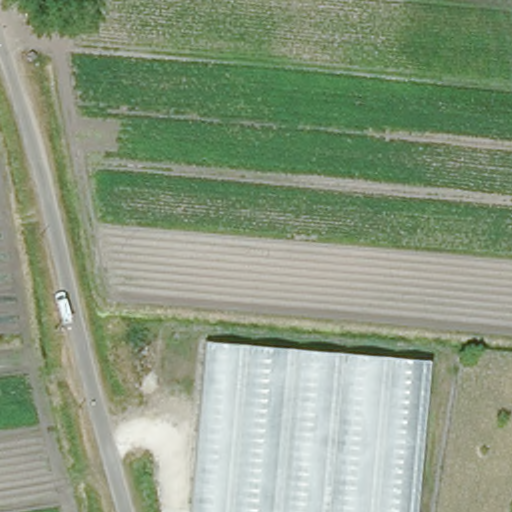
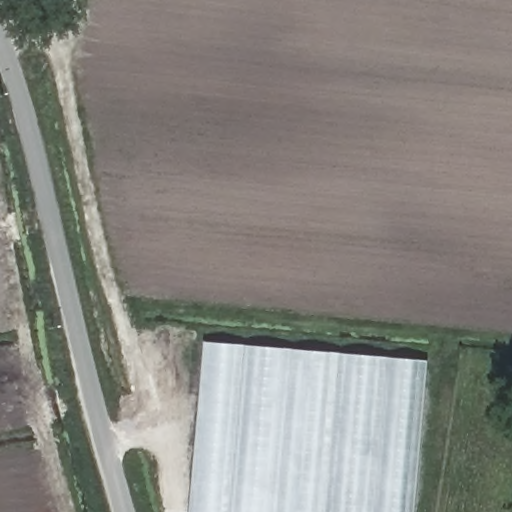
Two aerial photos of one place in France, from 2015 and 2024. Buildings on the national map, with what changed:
unchanged [(413,512),(184,512),(196,339),(426,358),(413,512)]

